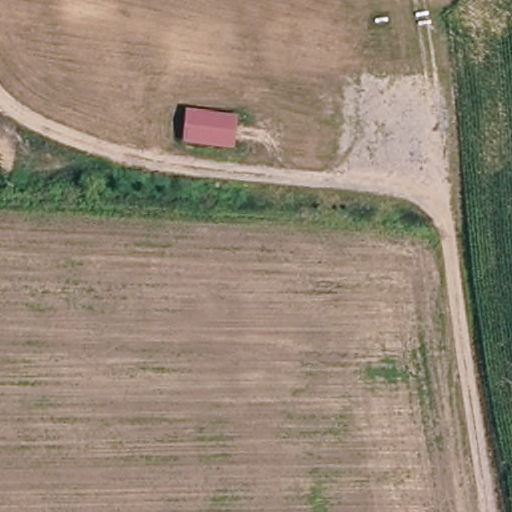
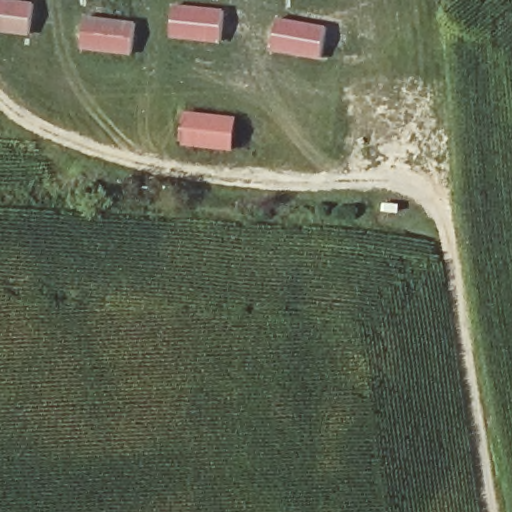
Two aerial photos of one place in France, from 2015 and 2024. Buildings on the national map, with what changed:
new [(30,37),(0,33),(0,0),(17,0),(35,2),(30,37)]
new [(169,3),(224,9),(221,44),(166,38),(169,3)]
new [(80,14),(135,21),(131,54),(77,48),(80,14)]
new [(276,17),(327,26),(320,61),(270,51),(276,17)]
unchanged [(241,116),(237,151),(186,145),(185,110),(241,116)]

